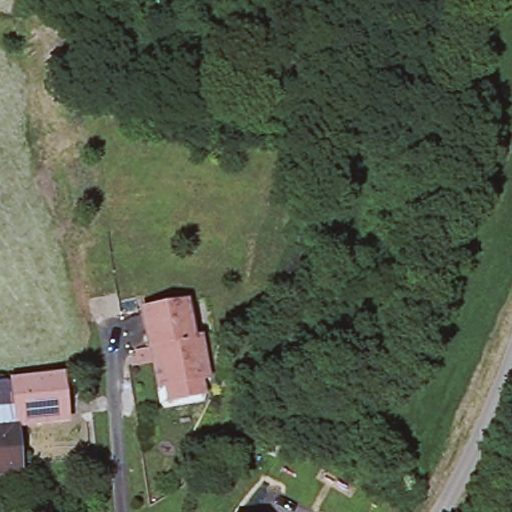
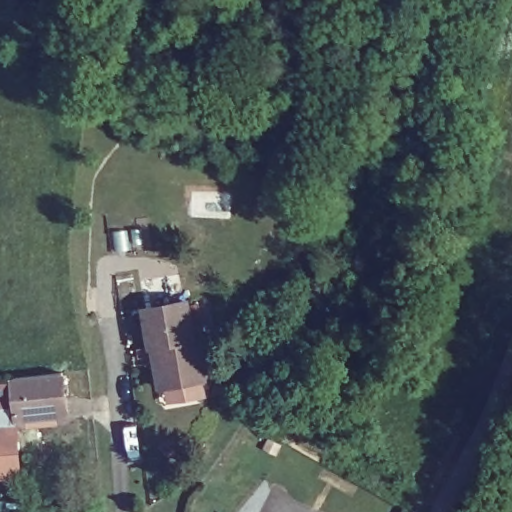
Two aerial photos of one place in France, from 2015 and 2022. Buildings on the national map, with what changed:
unchanged [(172,388),(165,389),(160,363),(166,362),(163,348),(155,350),(148,311),(190,305),(196,340),(203,340),(205,340),(211,381),(204,382),(206,396),(204,396),(175,401),(172,388)]
unchanged [(20,430),(25,481),(0,485),(0,386),(12,385),(12,381),(65,375),(70,425),(20,430)]

